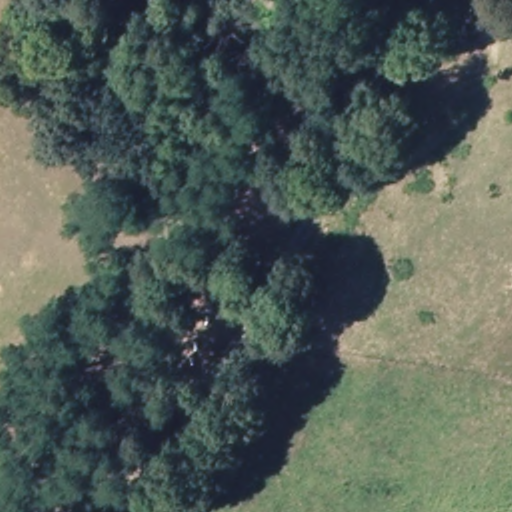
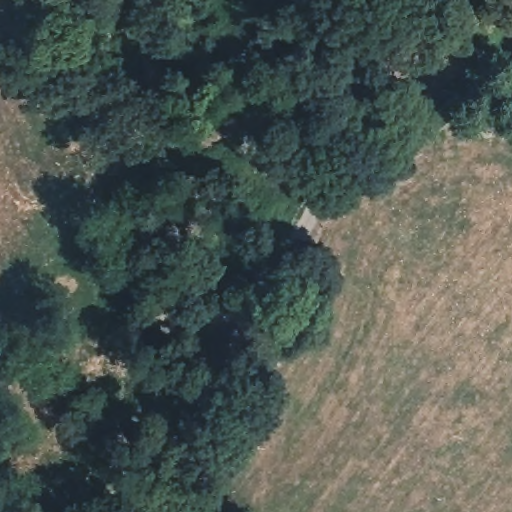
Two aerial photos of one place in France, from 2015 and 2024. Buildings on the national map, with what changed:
[]

